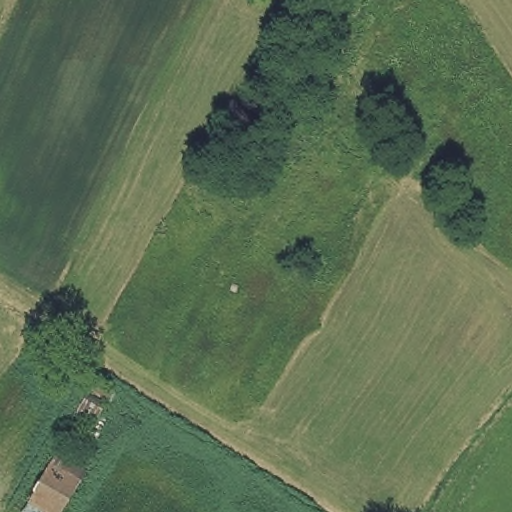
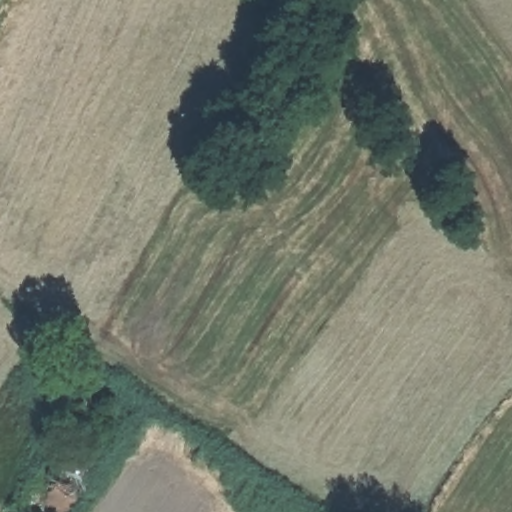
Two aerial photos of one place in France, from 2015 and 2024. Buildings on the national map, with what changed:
unchanged [(81,467),(89,472),(68,512),(43,512),(30,503),(68,437),(88,448),(81,467)]

